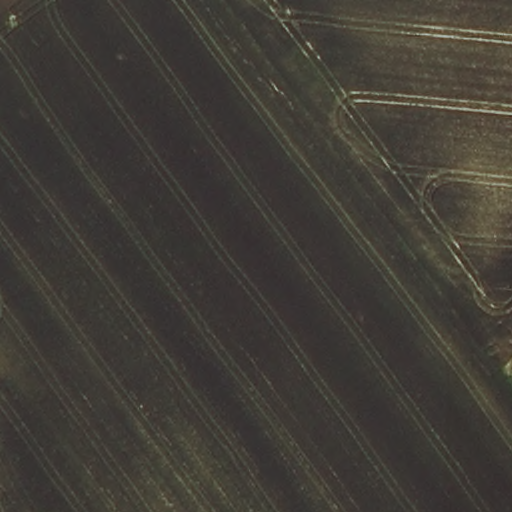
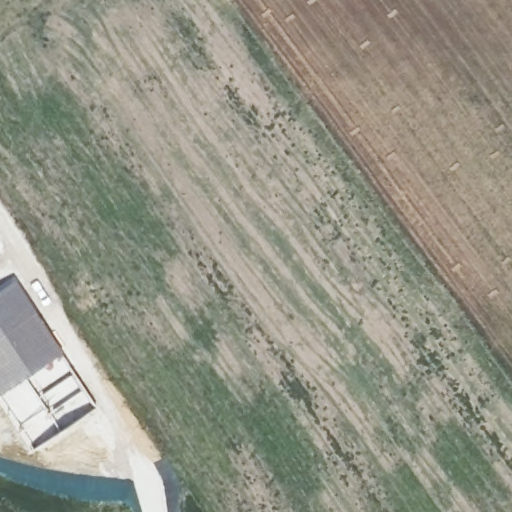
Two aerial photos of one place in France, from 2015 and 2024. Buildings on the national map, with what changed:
new [(16,275),(66,354),(98,409),(32,453),(0,409),(0,286),(16,275)]

